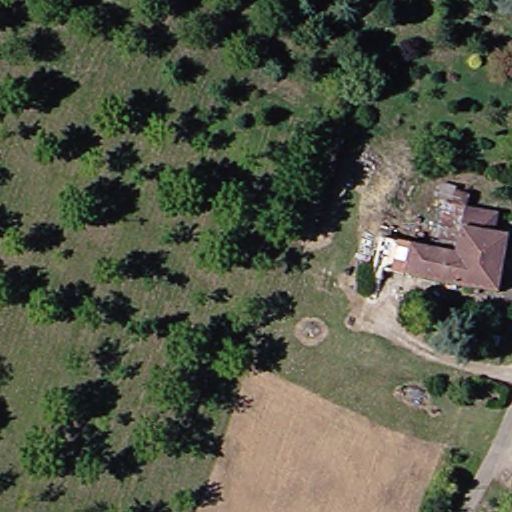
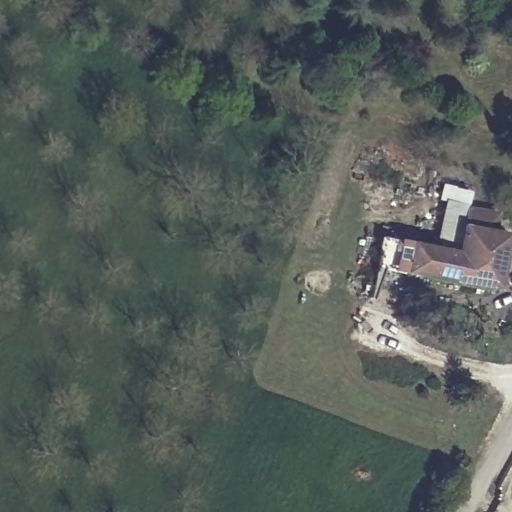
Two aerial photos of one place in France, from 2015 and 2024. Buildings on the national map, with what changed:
unchanged [(470,208),(459,253),(440,247),(452,200),(446,198),(448,181),(473,188),(470,208)]
unchanged [(440,247),(459,253),(470,208),(503,218),(502,233),(511,235),(499,290),(408,272),(382,268),(387,237),(414,242),(440,247)]
unchanged [(512,469),(512,502),(496,492),(512,469)]

